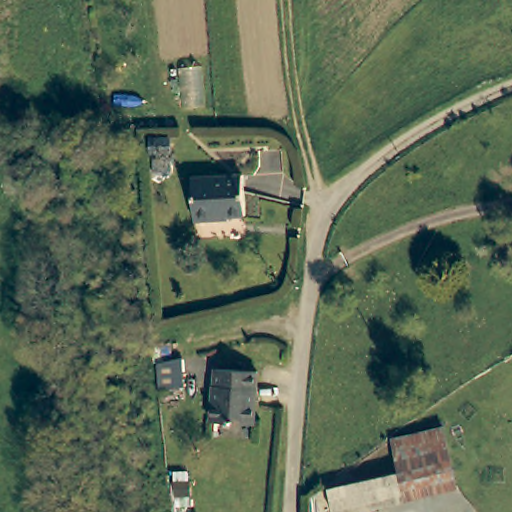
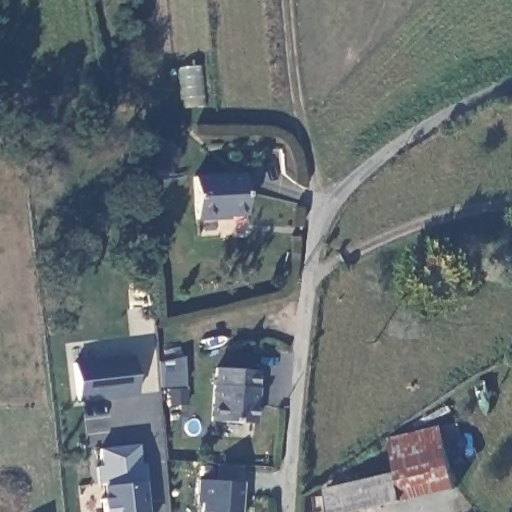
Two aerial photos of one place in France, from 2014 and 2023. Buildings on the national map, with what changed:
unchanged [(242,216),(191,217),(189,176),(240,173),(242,216)]
new [(77,401),(70,362),(134,355),(139,395),(77,401)]
unchanged [(254,371),(248,422),(207,419),(210,383),(212,383),(214,367),(254,371)]
unchanged [(449,434),(461,489),(410,501),(405,473),(398,441),(447,428),(449,434)]
new [(147,462),(150,501),(145,501),(146,512),(105,512),(101,486),(95,449),(139,443),(142,463),(147,462)]
unchanged [(335,494),(333,490),(405,473),(410,501),(363,512),(322,512),(318,497),(335,494)]
new [(200,512),(201,503),(196,502),(200,477),(241,481),(239,512),(200,512)]

